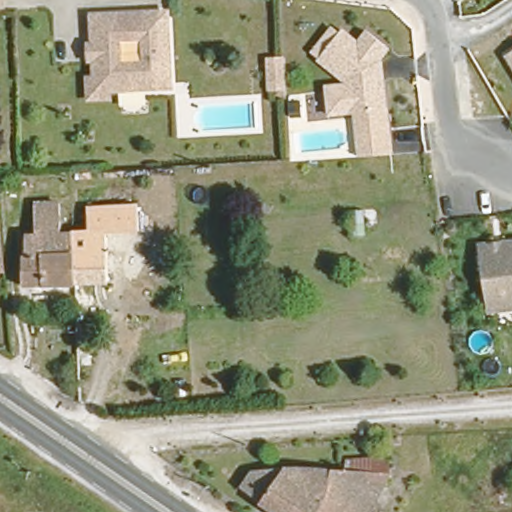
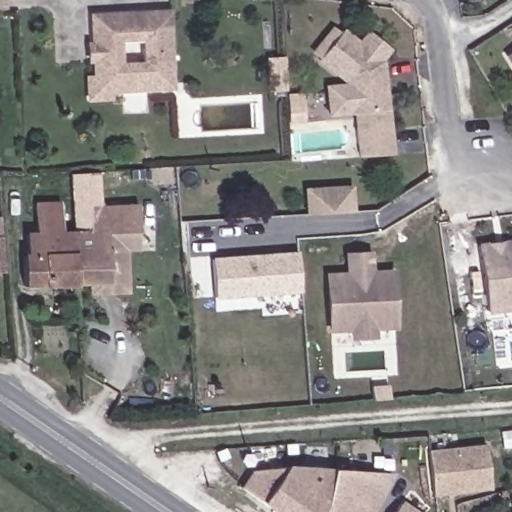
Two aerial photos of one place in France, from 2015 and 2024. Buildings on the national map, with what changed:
unchanged [(8,3),(0,3),(0,0),(8,0),(8,3)]
unchanged [(96,75),(93,21),(92,11),(169,9),(169,18),(173,82),(111,87),(111,95),(95,96),(90,96),(90,94),(89,76),(96,75)]
unchanged [(358,41),(368,30),(389,47),(381,57),(388,107),(351,113),(346,80),(319,57),(343,30),(358,41)]
unchanged [(505,50),(512,46),(512,62),(505,50)]
unchanged [(270,91),(266,57),(283,55),(287,90),(270,91)]
unchanged [(359,125),(391,123),(394,154),(361,156),(359,125)]
new [(355,186),(356,207),(308,210),(307,188),(355,186)]
unchanged [(88,227),(86,202),(135,197),(138,222),(107,226),(108,275),(73,277),(73,229),(88,227)]
unchanged [(22,280),(21,255),(29,254),(27,232),(35,232),(33,204),(58,201),(61,230),(73,229),(73,277),(22,280)]
unchanged [(488,307),(482,246),(512,243),(512,309),(488,312),(488,307)]
new [(397,327),(376,329),(378,339),(349,338),(348,331),(327,332),(324,271),(344,270),(344,250),(369,249),(369,268),(393,268),(397,327)]
unchanged [(0,269),(0,253),(1,269),(0,269)]
new [(296,255),(299,292),(214,299),(211,261),(296,255)]
new [(490,487),(432,493),(429,448),(486,444),(490,487)]
unchanged [(234,475),(287,461),(359,472),(360,461),(398,462),(390,477),(371,512),(268,512),(229,487),(234,475)]
new [(416,512),(393,512),(401,501),(416,512)]

